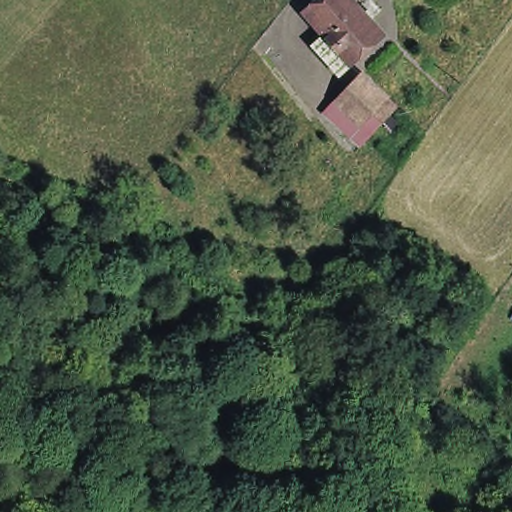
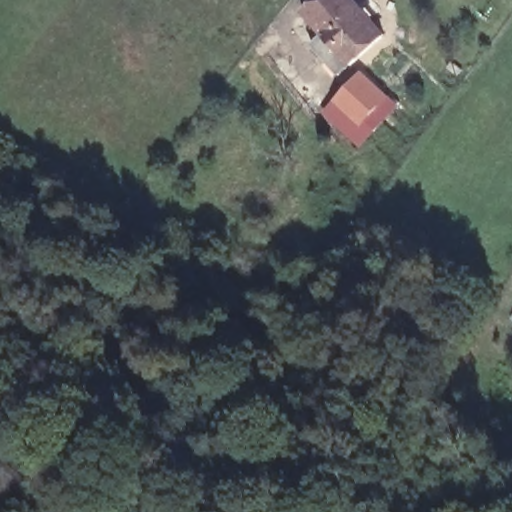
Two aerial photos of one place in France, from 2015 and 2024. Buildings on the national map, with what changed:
unchanged [(313,44),(324,35),(315,26),(303,12),(316,0),(353,0),(384,34),(351,65),(339,75),(328,62),(313,44)]
unchanged [(343,88),(349,80),(356,73),(392,105),(379,120),(358,144),(321,111),(343,88)]
unchanged [(512,316),(512,319),(511,318),(512,316)]

